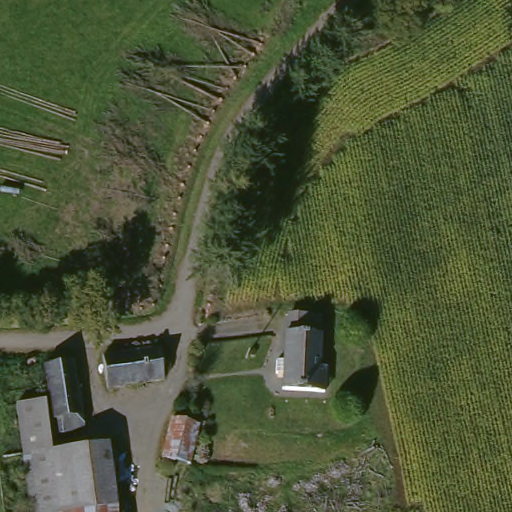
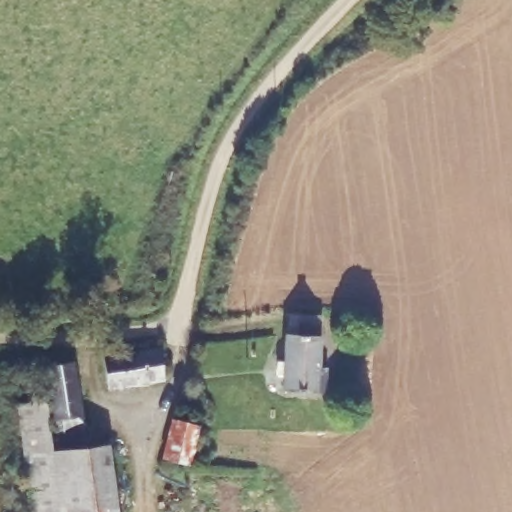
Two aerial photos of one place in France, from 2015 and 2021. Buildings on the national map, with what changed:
unchanged [(288,312),(322,312),(318,389),(284,388),(288,312)]
unchanged [(108,360),(165,351),(166,383),(111,390),(108,360)]
unchanged [(45,367),(77,363),(86,431),(55,436),(45,367)]
unchanged [(15,403),(41,399),(49,453),(23,457),(15,403)]
unchanged [(171,420),(199,427),(190,467),(161,462),(171,420)]
unchanged [(23,457),(49,453),(61,452),(68,451),(110,445),(118,512),(7,512),(0,460),(23,457)]

